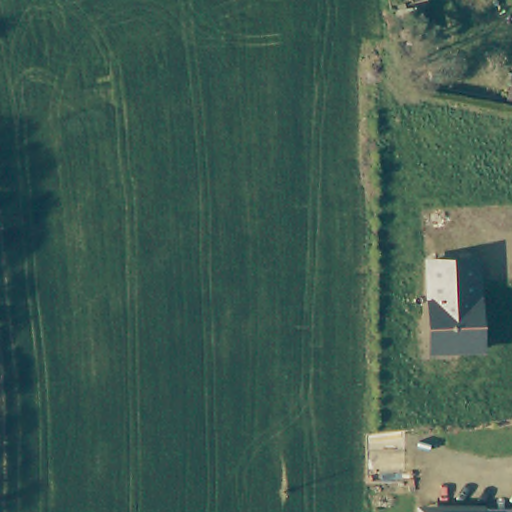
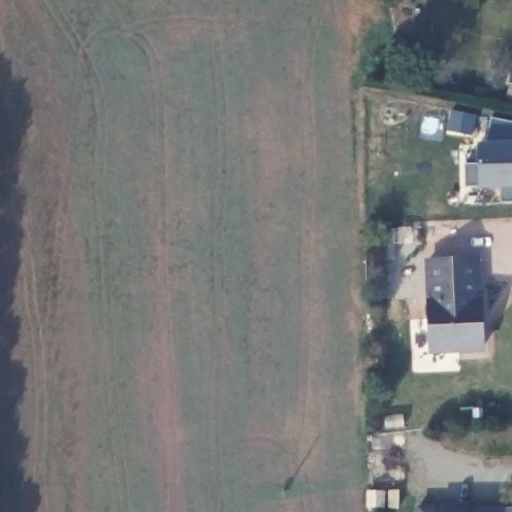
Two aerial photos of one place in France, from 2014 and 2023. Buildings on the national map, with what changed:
unchanged [(512,99),(508,98),(512,78),(512,99)]
new [(512,202),(501,202),(500,188),(479,187),(466,185),(465,165),(477,165),(478,143),(485,143),(491,118),(512,123),(512,202)]
unchanged [(480,348),(462,349),(430,351),(425,262),(458,260),(475,259),(480,348)]
unchanged [(469,507),(485,507),(485,512),(419,512),(418,508),(469,507)]

